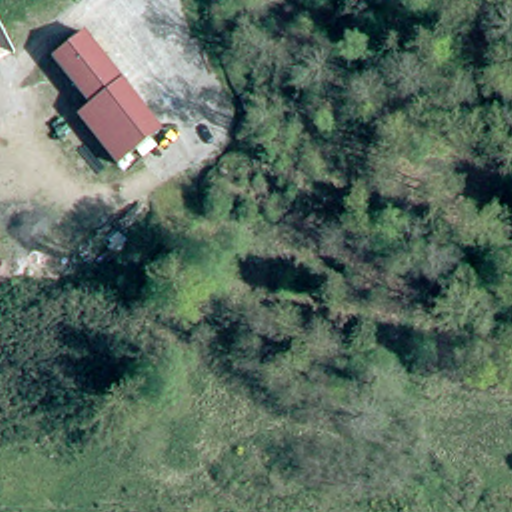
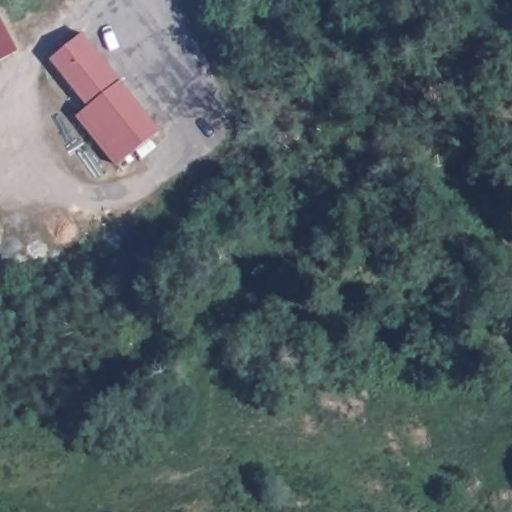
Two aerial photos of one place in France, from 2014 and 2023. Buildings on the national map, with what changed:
unchanged [(48,54),(78,28),(120,79),(104,90),(86,104),(48,54)]
unchanged [(104,90),(120,79),(166,131),(116,170),(73,115),(86,104),(104,90)]

